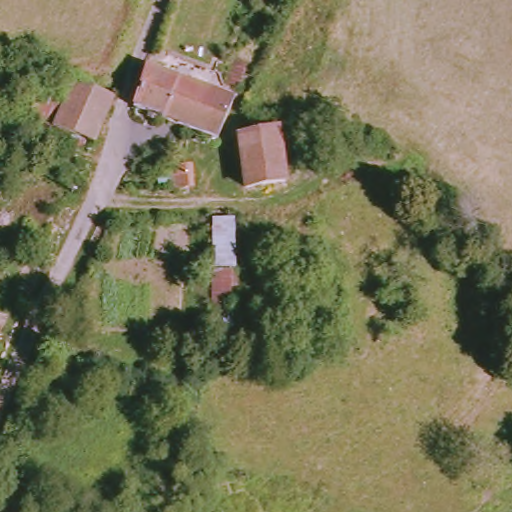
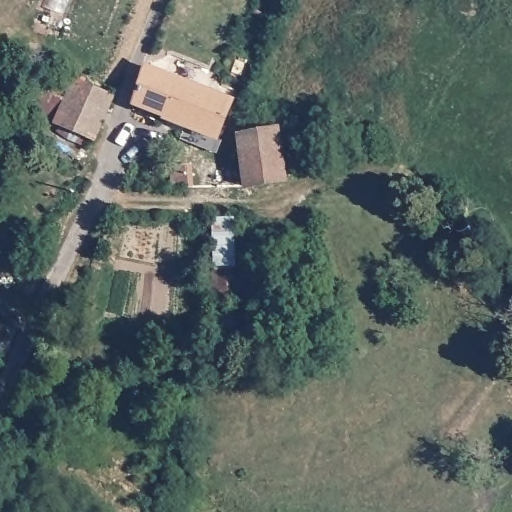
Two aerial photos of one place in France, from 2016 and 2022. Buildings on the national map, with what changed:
unchanged [(234,99),(224,135),(143,110),(157,73),(234,99)]
unchanged [(52,94),(75,101),(81,83),(119,94),(104,143),(65,131),(45,114),(52,94)]
unchanged [(248,183),(244,134),(282,130),(287,179),(248,183)]
unchanged [(167,161),(191,159),(197,183),(170,186),(167,161)]
unchanged [(256,274),(249,275),(249,225),(277,225),(278,278),(293,279),(293,319),(257,315),(256,274)]
unchanged [(215,305),(216,271),(244,269),(244,309),(249,312),(251,349),(212,346),(215,305)]

